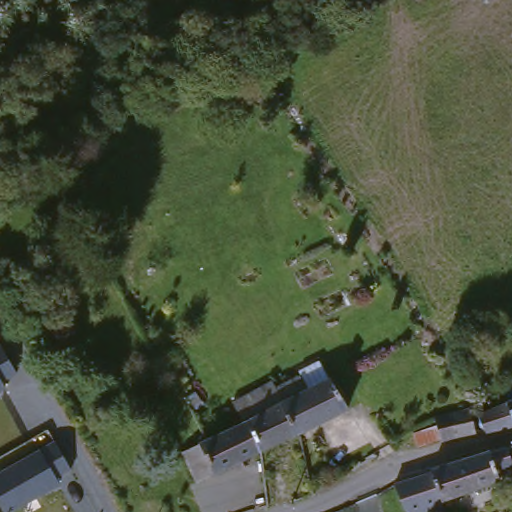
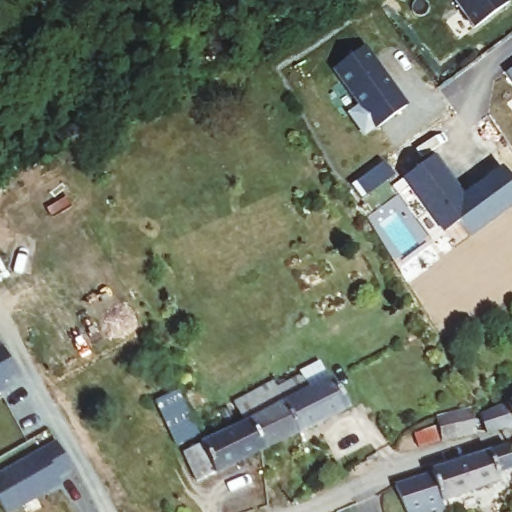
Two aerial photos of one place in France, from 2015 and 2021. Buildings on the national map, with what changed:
new [(510,1),(473,29),(452,0),(509,0),(510,1)]
new [(408,103),(364,134),(346,111),(358,103),(333,69),(364,44),(408,103)]
new [(512,81),(505,72),(512,66),(512,81)]
new [(501,166),(512,181),(512,204),(467,237),(455,222),(442,231),(403,177),(433,155),(463,194),(501,166)]
unchanged [(3,345),(18,373),(3,382),(7,391),(0,394),(0,346),(3,345)]
unchanged [(273,400),(299,387),(296,380),(316,369),(325,387),(326,387),(341,415),(316,427),(293,439),(273,400)]
unchanged [(478,435),(433,449),(426,426),(512,398),(512,431),(481,441),(478,435)]
unchanged [(264,452),(251,425),(246,413),(273,400),(293,439),(264,452)]
unchanged [(197,453),(204,449),(251,425),(264,452),(209,479),(196,483),(185,459),(197,453)]
unchanged [(73,470),(58,478),(61,484),(9,512),(5,512),(0,502),(0,472),(56,440),(73,470)]
unchanged [(435,506),(426,474),(504,450),(506,463),(512,458),(512,473),(491,477),(491,474),(476,478),(479,494),(435,506)]

